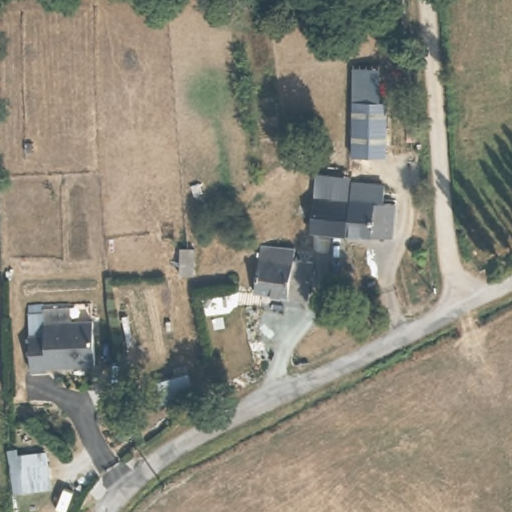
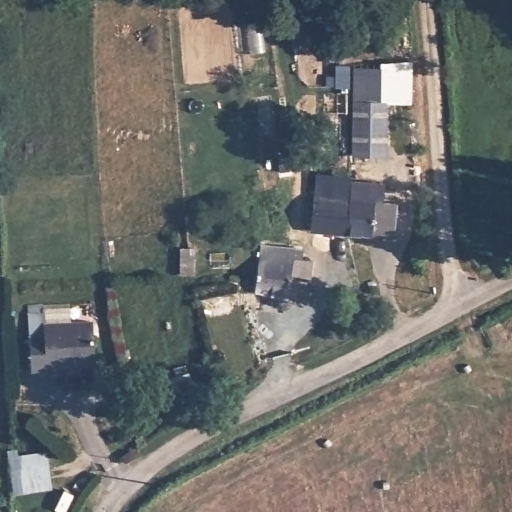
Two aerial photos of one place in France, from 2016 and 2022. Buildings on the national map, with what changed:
unchanged [(387,109),(385,165),(352,164),(354,108),(387,109)]
unchanged [(392,242),(359,241),(347,240),(350,209),(395,213),(392,238),(392,242)]
unchanged [(268,300),(252,298),(253,248),(288,251),(288,263),(303,263),(309,264),(306,304),(301,303),(288,302),(268,300)]
unchanged [(33,329),(33,317),(83,316),(82,359),(34,360),(34,363),(22,363),(18,363),(18,329),(20,329),(33,329)]
unchanged [(202,394),(159,408),(153,385),(197,374),(202,394)]

